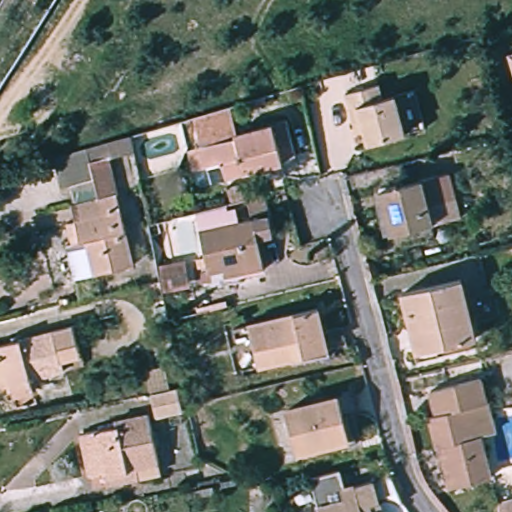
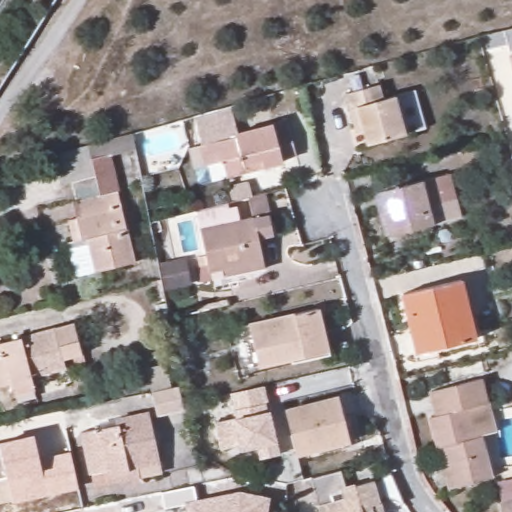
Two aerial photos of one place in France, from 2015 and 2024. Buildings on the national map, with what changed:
unchanged [(512,54),(512,62),(510,55),(512,54)]
unchanged [(380,100),(393,96),(403,134),(363,145),(359,132),(351,134),(342,94),(377,85),(380,100)]
unchanged [(202,182),(197,176),(196,170),(191,150),(201,147),(200,145),(201,145),(193,116),(218,110),(230,106),(237,133),(272,123),(274,129),(289,125),(296,155),(282,158),(284,164),(227,179),(208,184),(202,182)]
unchanged [(133,254),(75,267),(67,234),(73,232),(69,211),(76,210),(74,192),(76,191),(72,174),(62,176),(58,159),(109,146),(133,254)]
unchanged [(457,200),(430,207),(434,225),(392,235),(381,192),(451,174),(457,200)]
unchanged [(271,232),(257,236),(263,269),(225,277),(224,270),(210,272),(201,229),(252,217),(247,197),(230,202),(226,187),(246,182),(250,197),(263,194),(271,232)]
unchanged [(476,339),(416,353),(403,295),(463,281),(476,339)]
unchanged [(329,352),(260,368),(250,325),(320,310),(329,352)]
unchanged [(82,355),(64,360),(66,368),(31,378),(35,393),(13,397),(11,385),(0,388),(0,344),(74,325),(82,355)]
unchanged [(495,434),(481,436),(492,478),(448,490),(431,418),(437,417),(431,392),(482,380),(495,434)]
new [(265,402),(266,410),(270,410),(278,443),(280,454),(260,459),(257,447),(242,451),(241,443),(221,448),(216,422),(236,417),(234,410),(231,394),(266,385),(269,401),(265,402)]
unchanged [(174,386),(180,410),(152,417),(147,392),(174,386)]
unchanged [(351,442),(298,455),(287,411),(339,398),(351,442)]
unchanged [(156,473),(104,485),(101,471),(85,475),(77,435),(113,427),(111,420),(144,413),(156,473)]
new [(78,488),(13,503),(14,500),(0,502),(0,442),(35,435),(40,457),(71,451),(78,488)]
unchanged [(336,470),(342,490),(369,482),(369,485),(370,485),(372,485),(373,484),(375,483),(376,482),(377,482),(378,481),(379,480),(380,479),(381,478),(382,477),(383,475),(385,473),(385,472),(386,471),(389,482),(395,501),(396,501),(398,505),(397,504),(393,502),(391,501),(389,501),(387,501),(382,500),(380,500),(378,501),(375,501),(374,502),(376,512),(316,512),(307,478),(336,470)]
new [(268,512),(187,512),(186,504),(166,510),(162,492),(194,485),(197,498),(241,490),(271,497),(268,512)]
unchanged [(512,501),(512,512),(501,512),(499,504),(512,501)]

